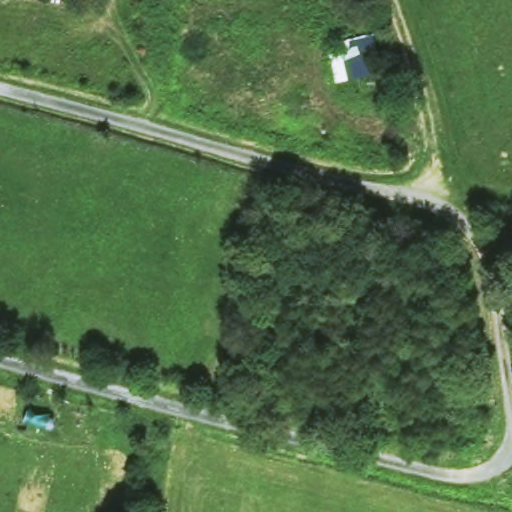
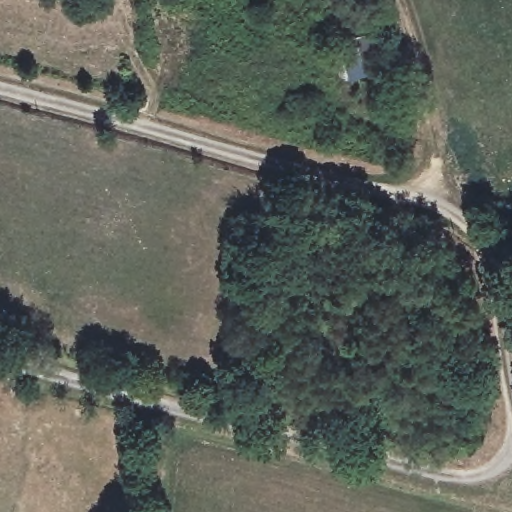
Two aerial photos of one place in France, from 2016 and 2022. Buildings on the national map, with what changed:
unchanged [(480,413),(449,412),(450,392),(480,393),(480,413)]

